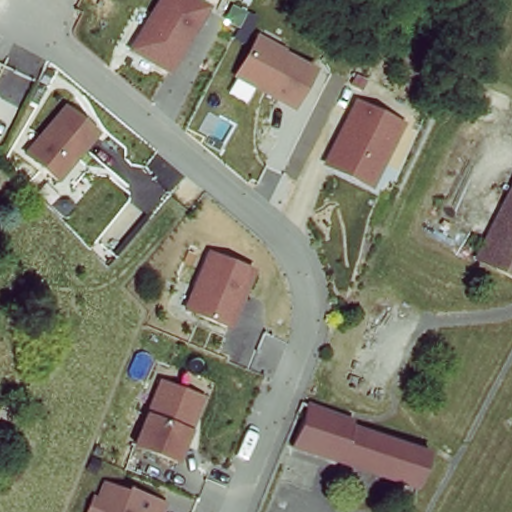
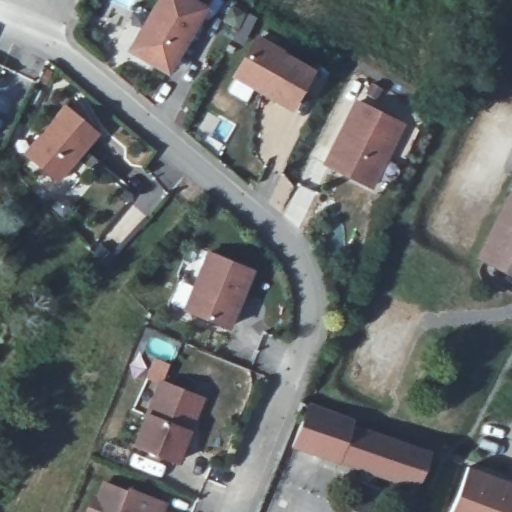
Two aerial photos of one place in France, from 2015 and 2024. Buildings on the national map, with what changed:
unchanged [(173,74),(127,46),(155,0),(196,0),(211,8),(173,74)]
unchanged [(298,110),(238,77),(261,32),(321,64),(298,110)]
unchanged [(325,164),(356,101),(405,124),(375,189),(325,164)]
unchanged [(65,182),(29,153),(65,106),(102,135),(65,182)]
unchanged [(512,194),(512,268),(483,253),(512,194)]
unchanged [(236,326),(186,308),(208,250),(258,268),(236,326)]
unchanged [(185,460),(135,442),(160,381),(213,399),(185,460)]
unchanged [(418,486),(293,442),(310,403),(433,448),(418,486)]
new [(512,478),(512,512),(457,512),(474,464),(512,478)]
unchanged [(170,501),(166,512),(92,512),(103,480),(170,501)]

